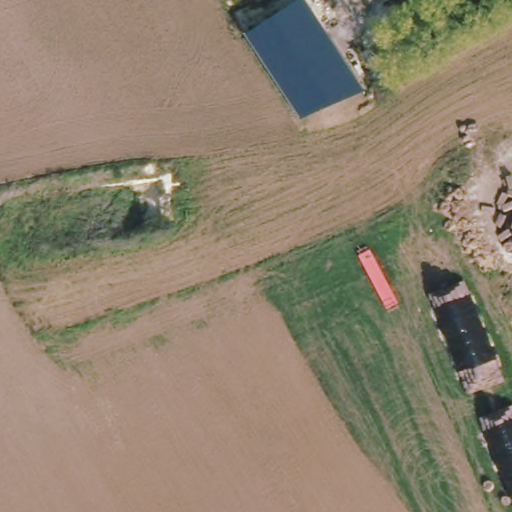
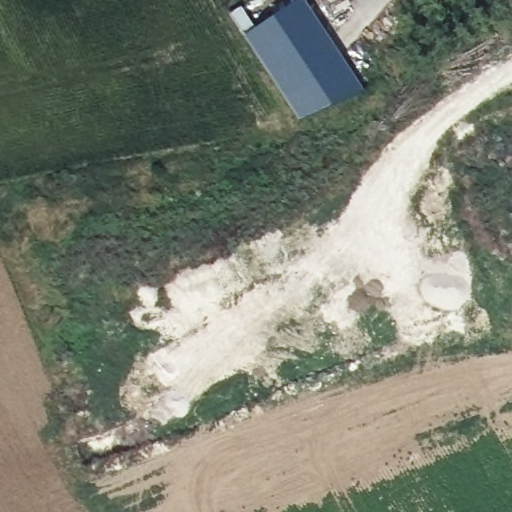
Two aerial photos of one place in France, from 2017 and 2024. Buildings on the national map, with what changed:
unchanged [(245,35),(297,0),(305,0),(363,92),(300,119),(245,35)]

